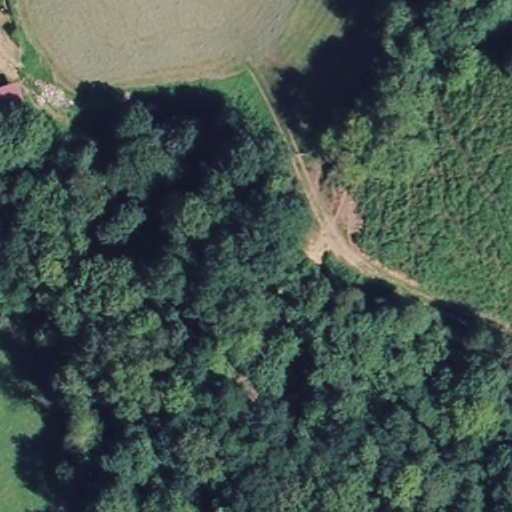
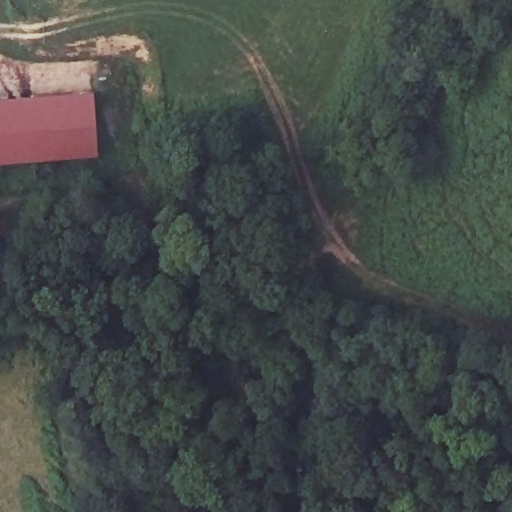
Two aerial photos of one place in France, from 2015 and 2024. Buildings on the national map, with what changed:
demolished [(27,117),(0,126),(0,94),(16,89),(27,117)]
new [(92,90),(95,152),(0,158),(0,96),(92,90)]

